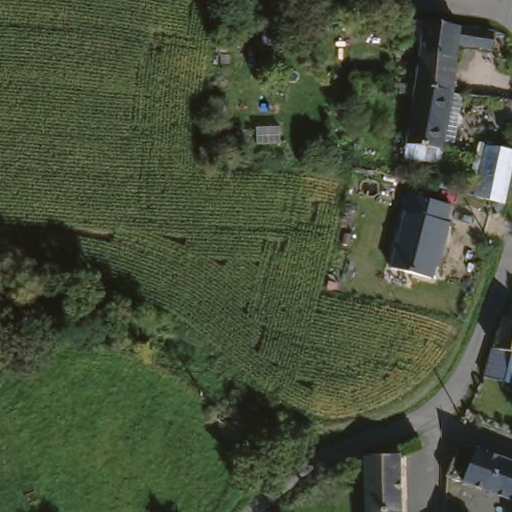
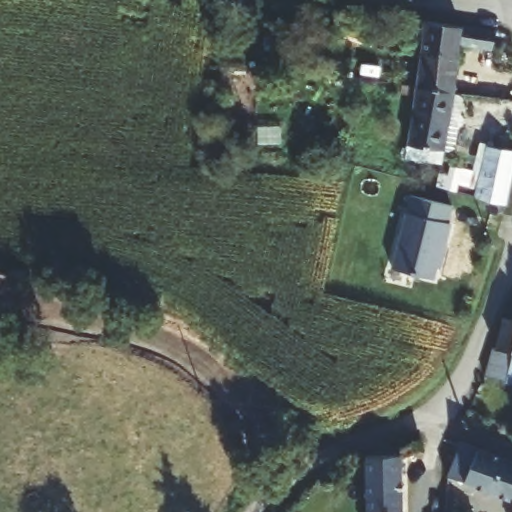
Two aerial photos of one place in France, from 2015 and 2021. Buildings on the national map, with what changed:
unchanged [(421,47),(425,19),(494,29),(491,47),(461,43),(455,88),(417,83),(418,67),(421,47)]
unchanged [(265,34),(289,36),(287,51),(263,49),(265,34)]
unchanged [(455,88),(444,146),(408,139),(417,83),(455,88)]
unchanged [(476,196),(486,150),(512,154),(512,173),(506,202),(476,196)]
unchanged [(406,190),(452,203),(436,275),(390,262),(406,190)]
unchanged [(500,323),(512,327),(512,360),(506,359),(490,354),(500,323)]
unchanged [(486,353),(490,354),(506,359),(512,360),(512,390),(498,387),(479,382),(486,353)]
unchanged [(449,471),(440,467),(449,438),(499,457),(488,492),(448,476),(449,471)]
unchanged [(499,457),(512,463),(512,501),(488,492),(499,457)]
unchanged [(399,461),(398,512),(363,512),(362,464),(399,461)]

